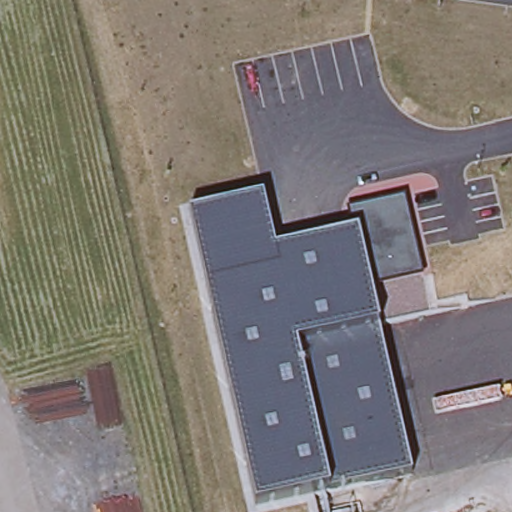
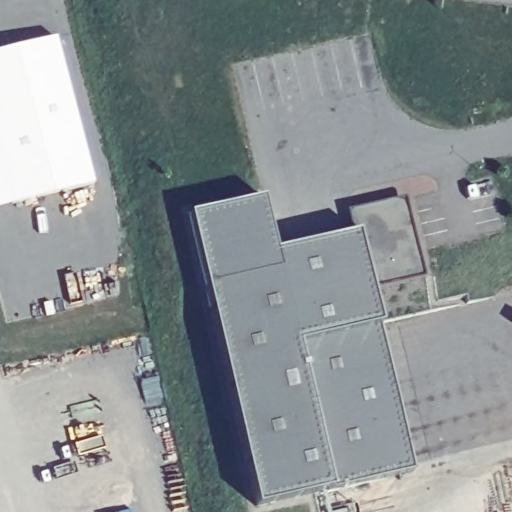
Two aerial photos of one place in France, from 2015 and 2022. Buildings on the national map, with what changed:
new [(59,33),(96,181),(0,204),(0,48),(59,33)]
unchanged [(327,490),(256,507),(190,214),(264,198),(276,251),(352,233),(346,210),(405,199),(422,278),(372,293),(378,325),(411,471),(327,490)]

